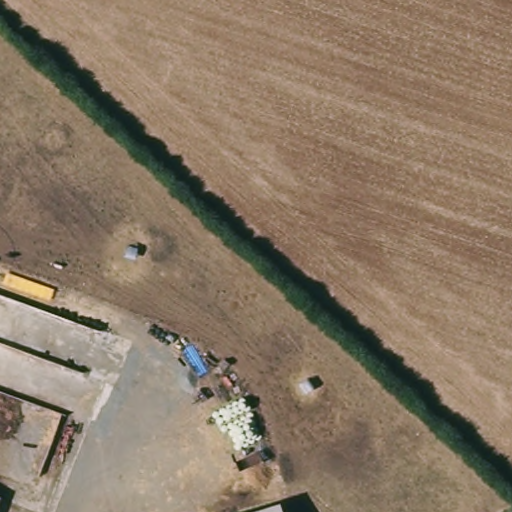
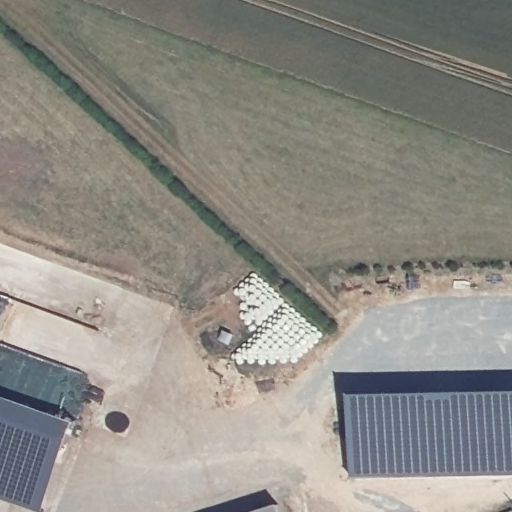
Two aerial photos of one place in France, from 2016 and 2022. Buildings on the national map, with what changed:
new [(354,477),(353,393),(512,391),(512,474),(354,477)]
unchanged [(279,505),(281,512),(256,512),(279,505)]

